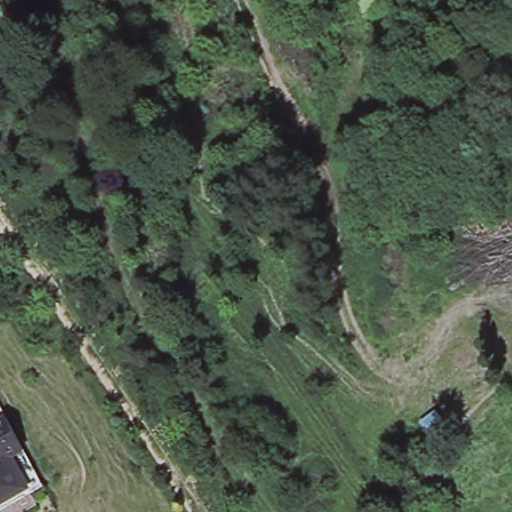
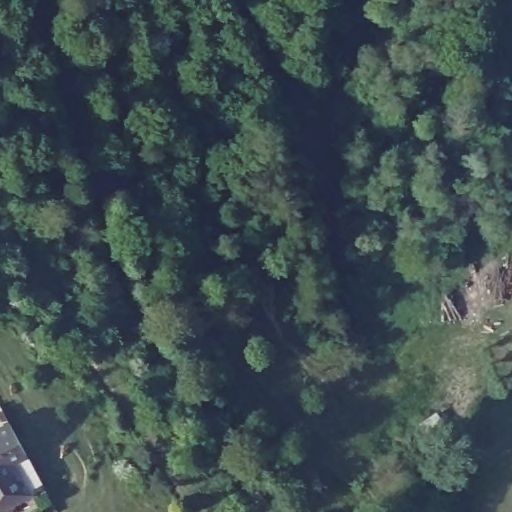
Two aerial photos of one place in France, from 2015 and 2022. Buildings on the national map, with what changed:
unchanged [(9,426),(25,456),(13,463),(29,495),(0,510),(0,410),(9,426)]

